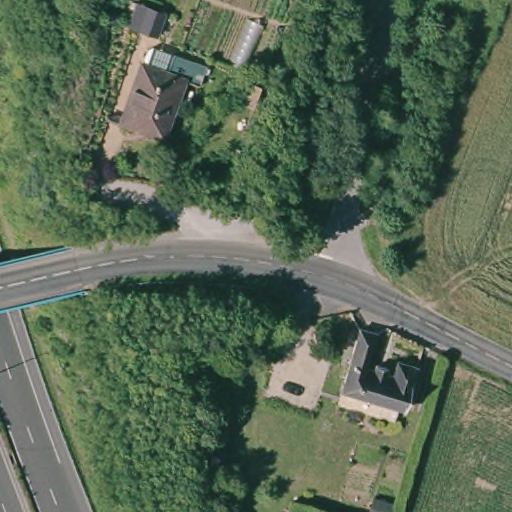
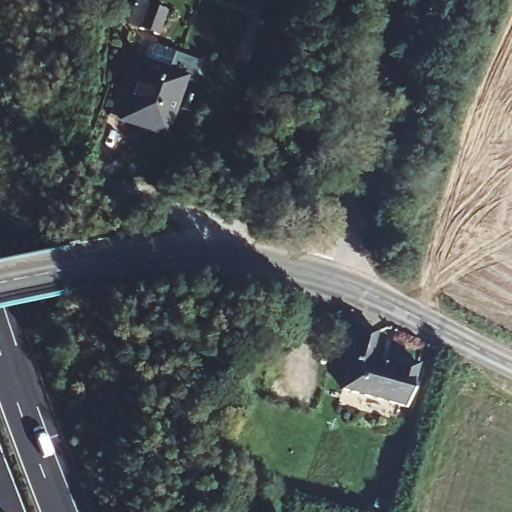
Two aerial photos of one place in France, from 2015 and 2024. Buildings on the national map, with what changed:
unchanged [(163,12),(152,39),(137,33),(147,6),(163,12)]
unchanged [(197,80),(184,75),(163,131),(120,115),(142,57),(153,61),(160,44),(204,60),(197,80)]
unchanged [(218,65),(210,85),(199,80),(206,60),(218,65)]
unchanged [(375,332),(365,366),(373,369),(375,364),(385,367),(383,371),(392,374),(396,360),(415,365),(403,407),(340,390),(358,327),(375,332)]

